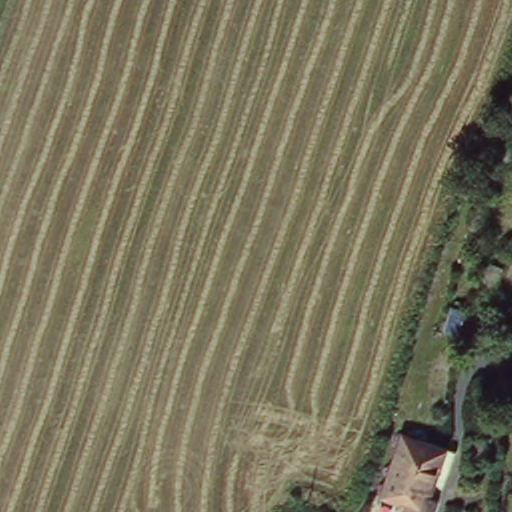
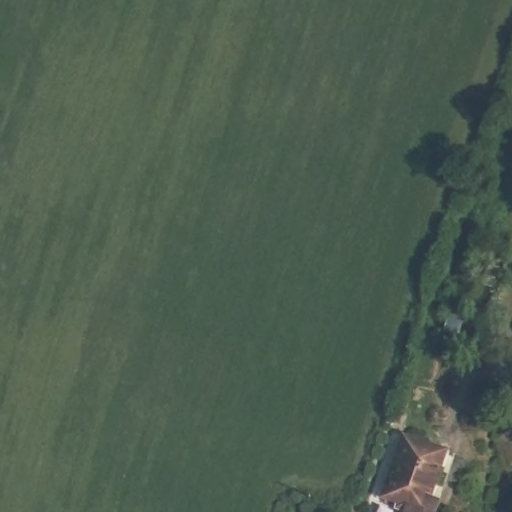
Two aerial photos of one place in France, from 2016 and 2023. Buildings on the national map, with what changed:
unchanged [(394,431),(437,446),(416,508),(388,497),(373,492),(394,431)]
unchanged [(437,446),(447,450),(426,512),(393,512),(394,506),(386,503),(388,497),(416,508),(437,446)]

